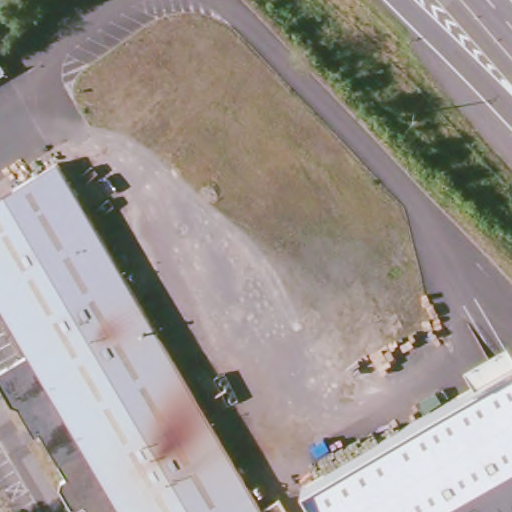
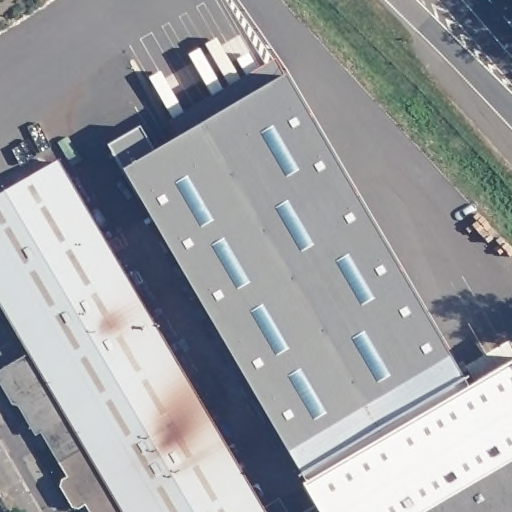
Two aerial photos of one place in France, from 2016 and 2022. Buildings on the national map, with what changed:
new [(456,370),(508,342),(512,350),(512,366),(306,487),(122,174),(108,147),(139,129),(154,154),(179,140),(169,122),(274,60),(284,78),(456,370)]
demolished [(0,75),(0,62),(5,71),(0,75)]
unchanged [(90,503),(79,511),(78,511),(74,510),(70,507),(60,487),(61,482),(66,477),(40,434),(43,432),(39,426),(32,431),(18,407),(13,406),(0,386),(0,371),(28,354),(0,305),(0,198),(39,175),(58,164),(69,184),(263,510),(281,500),(287,512),(95,512),(90,503)]
unchanged [(317,506),(306,487),(512,366),(512,512),(307,512),(317,506)]

